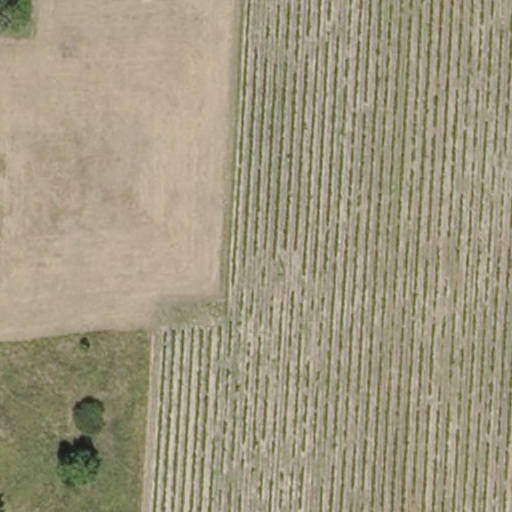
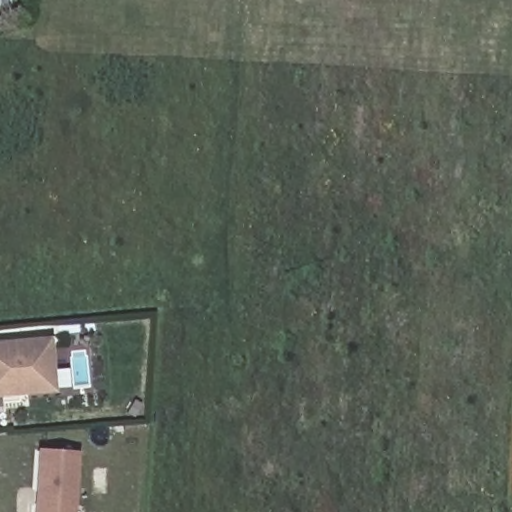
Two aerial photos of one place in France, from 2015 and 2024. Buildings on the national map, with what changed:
new [(55,392),(0,397),(0,341),(50,336),(55,392)]
new [(77,452),(74,512),(32,512),(35,449),(77,452)]

